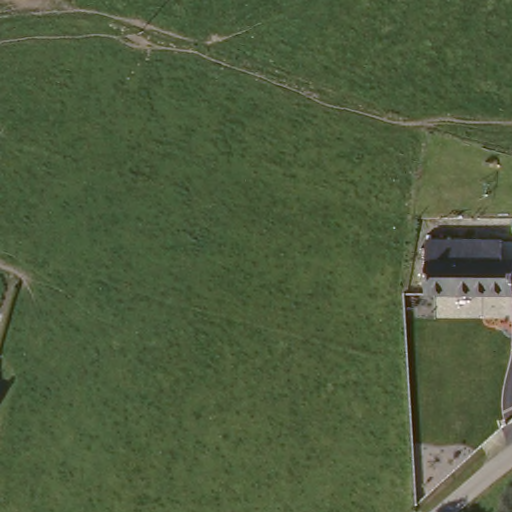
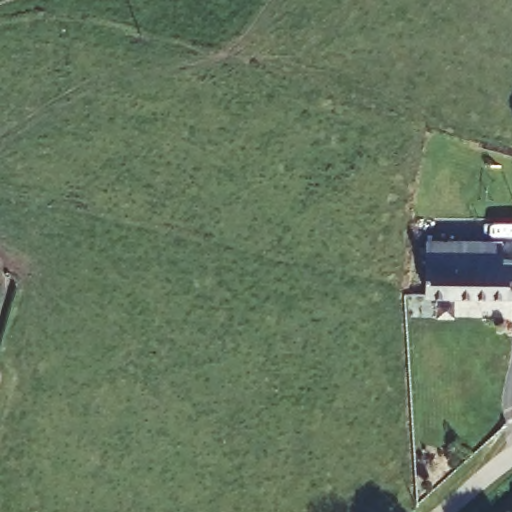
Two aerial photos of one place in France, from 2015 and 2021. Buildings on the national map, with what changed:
unchanged [(474,292),(422,291),(424,236),(498,239),(497,257),(512,257),(512,293),(474,292)]

